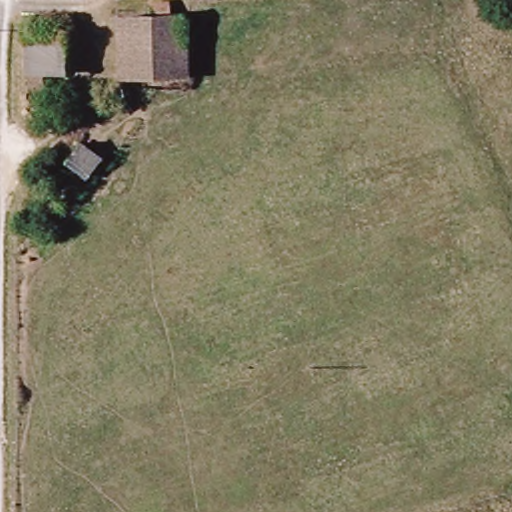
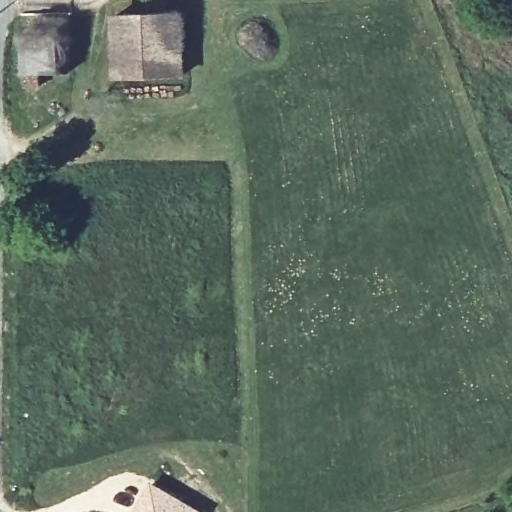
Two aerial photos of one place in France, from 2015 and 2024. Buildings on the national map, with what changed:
unchanged [(174,15),(188,14),(190,77),(121,79),(120,18),(152,15),(151,2),(173,2),(174,15)]
unchanged [(27,73),(31,31),(46,30),(47,14),(75,16),(75,32),(72,74),(27,73)]
new [(205,512),(132,512),(151,480),(205,512)]

